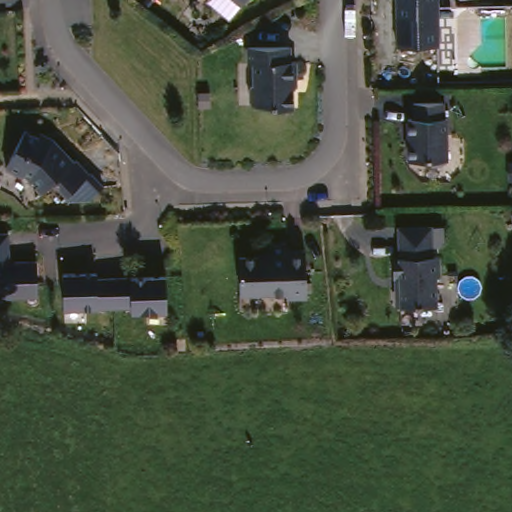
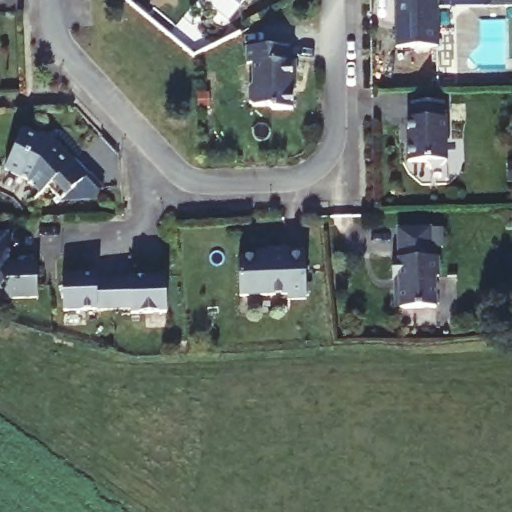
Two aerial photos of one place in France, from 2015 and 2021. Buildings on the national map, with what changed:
unchanged [(236,8),(226,0),(242,0),(236,8)]
unchanged [(394,0),(436,0),(437,49),(395,50),(394,0)]
unchanged [(291,50),(291,66),(297,66),(297,85),(293,85),(293,112),(275,113),(271,109),(255,109),(251,106),(251,91),(254,87),(254,67),(249,67),(249,51),(291,50)]
unchanged [(442,168),(428,169),(425,165),(407,165),(407,122),(412,122),(412,106),(442,105),(442,121),(445,121),(446,164),(442,168)]
unchanged [(22,134),(47,147),(51,143),(72,164),(74,162),(87,177),(61,203),(47,190),(41,197),(27,181),(5,169),(22,134)]
unchanged [(512,212),(512,225),(504,225),(503,212),(512,212)]
unchanged [(398,306),(394,302),(394,290),(398,286),(398,277),(392,277),(392,257),(397,257),(397,227),(430,226),(430,257),(437,256),(437,276),(433,276),(434,306),(398,306)]
unchanged [(0,231),(3,231),(5,263),(33,262),(35,298),(0,300),(0,231)]
unchanged [(235,262),(253,262),(253,259),(265,259),(265,252),(283,251),(283,256),(302,255),(303,302),(284,303),(284,298),(236,300),(235,262)]
unchanged [(65,275),(96,274),(96,280),(165,277),(167,314),(131,315),(131,309),(114,310),(66,312),(65,275)]

